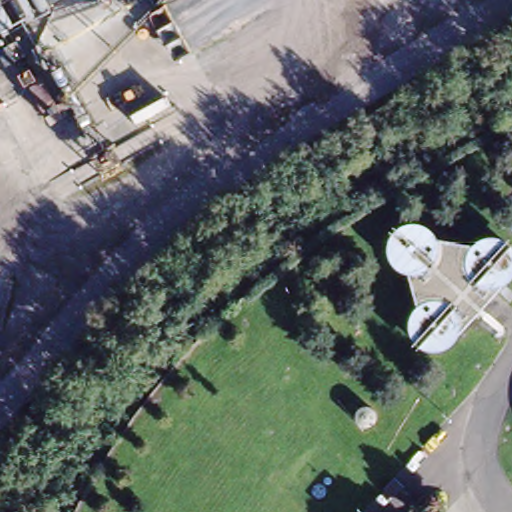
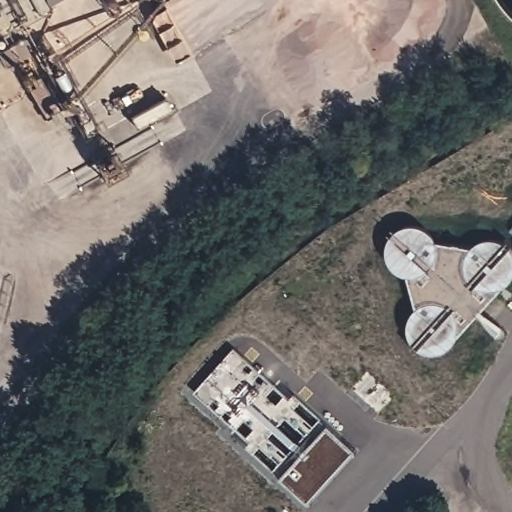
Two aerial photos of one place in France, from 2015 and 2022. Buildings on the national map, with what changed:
unchanged [(45,0),(58,0),(48,5),(45,0)]
unchanged [(18,75),(35,67),(65,117),(50,127),(18,75)]
unchanged [(408,274),(415,274),(420,272),(425,269),(430,264),(433,258),(435,251),(435,246),(433,240),(432,238),(476,243),(471,247),(468,252),(466,256),(465,259),(465,264),(465,267),(466,272),(468,276),(473,281),(477,284),(482,287),(485,289),(490,288),(494,287),(500,287),(480,307),(471,318),(456,335),(457,327),(457,319),(455,314),(450,308),(443,304),(438,303),(433,302),(427,303),(422,305),(419,307),(415,308),(413,310),(402,273),(404,274),(408,274)]
new [(311,502),(283,477),(246,445),(250,441),(195,392),(234,347),(291,397),(295,392),(331,425),(355,450),(311,502)]

